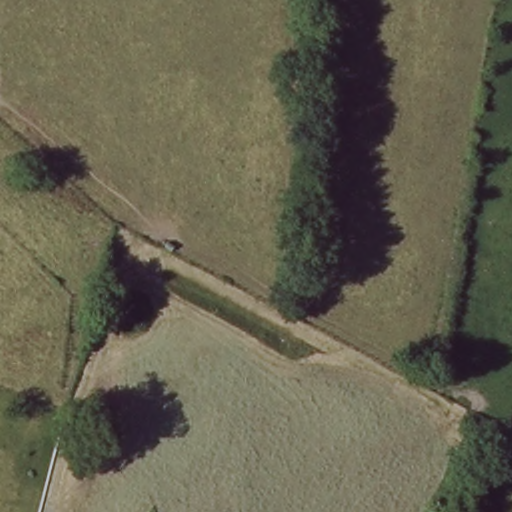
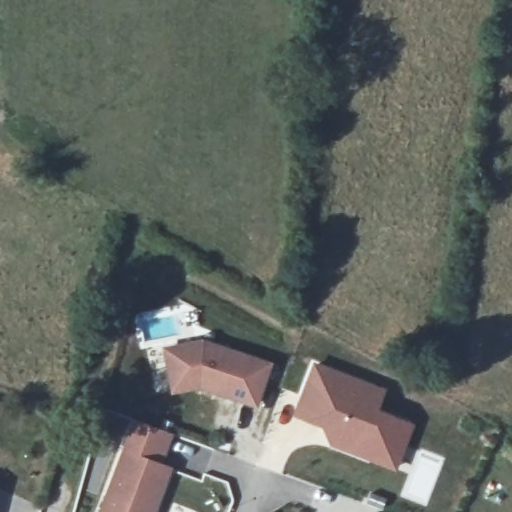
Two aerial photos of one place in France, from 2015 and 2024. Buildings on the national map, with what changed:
new [(199,388),(171,393),(161,347),(201,338),(273,362),(257,409),(199,388)]
new [(328,445),(321,426),(293,415),(312,362),(384,390),(377,410),(414,425),(397,472),(328,445)]
new [(172,434),(162,465),(172,467),(156,512),(98,512),(132,420),(172,434)]

